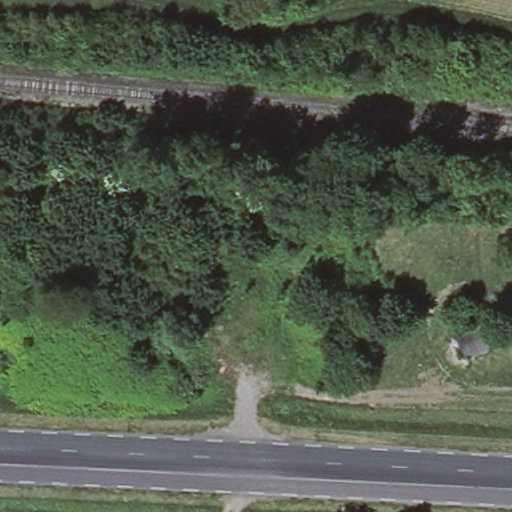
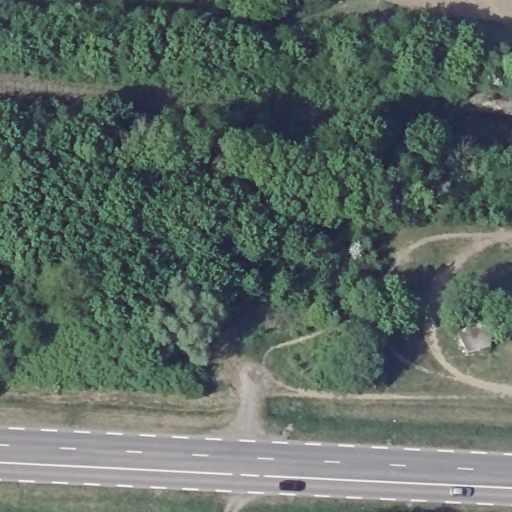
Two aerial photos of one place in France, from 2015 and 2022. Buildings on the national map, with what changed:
unchanged [(285,1),(283,0),(297,0),(295,2),(285,1)]
unchanged [(300,0),(309,0),(307,1),(300,0)]
unchanged [(467,111),(468,98),(511,100),(510,116),(467,111)]
unchanged [(460,332),(483,321),(489,323),(492,333),(491,348),(467,354),(457,335),(460,332)]

